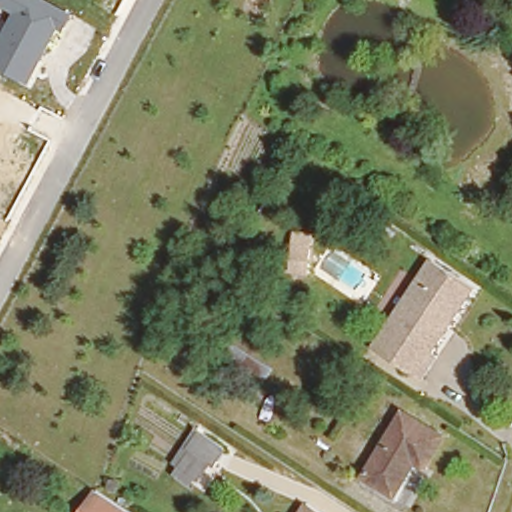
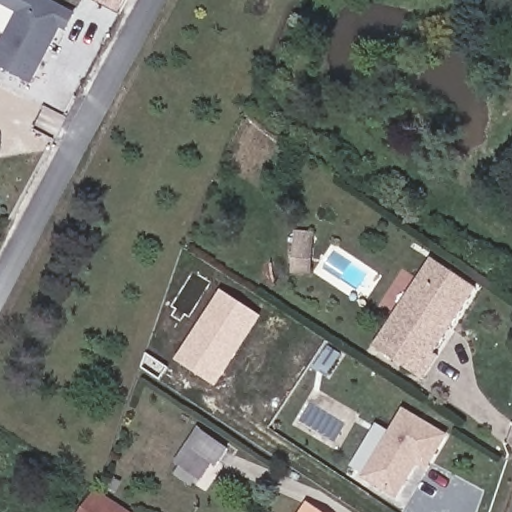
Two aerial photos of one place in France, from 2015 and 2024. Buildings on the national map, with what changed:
unchanged [(0,0),(49,0),(76,14),(67,32),(61,29),(32,85),(0,68),(0,43),(16,13),(0,5),(0,0)]
new [(95,0),(127,0),(119,13),(95,0)]
new [(296,231),(313,232),(313,242),(311,272),(295,271),(296,241),(296,231)]
unchanged [(434,351),(441,356),(427,379),(377,347),(432,260),(474,287),(434,351)]
new [(225,291),(263,316),(217,386),(179,362),(225,291)]
unchanged [(243,346),(284,373),(274,388),(233,362),(243,346)]
unchanged [(411,474),(397,496),(365,475),(404,412),(450,441),(432,469),(424,480),(411,474)]
unchanged [(191,430),(216,445),(207,461),(182,445),(191,430)]
unchanged [(173,454),(194,469),(186,480),(165,466),(173,454)]
unchanged [(94,493),(124,512),(82,512),(94,493)]
unchanged [(310,505),(320,512),(306,512),(310,505)]

